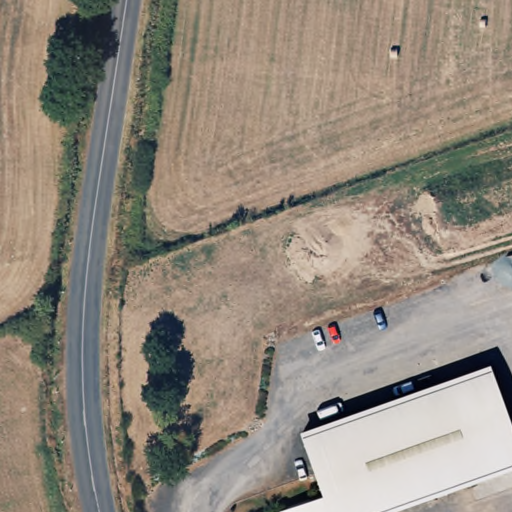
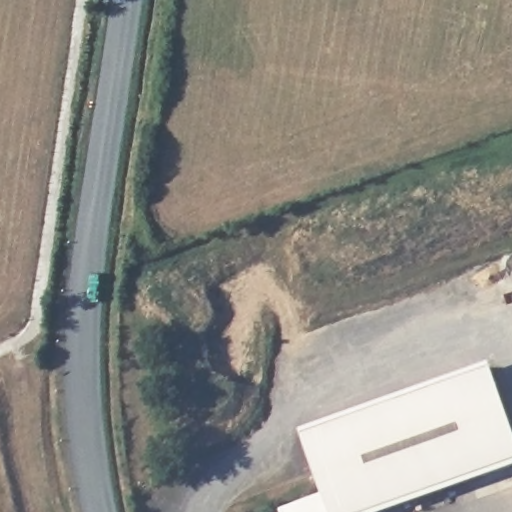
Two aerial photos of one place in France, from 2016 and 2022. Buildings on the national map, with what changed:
unchanged [(297,435),(486,364),(499,399),(309,468),(297,435)]
unchanged [(499,399),(512,436),(512,456),(361,512),(279,512),(278,509),(318,494),(309,468),(499,399)]

